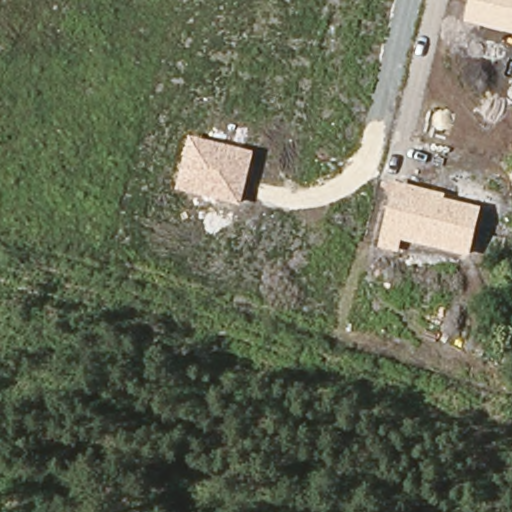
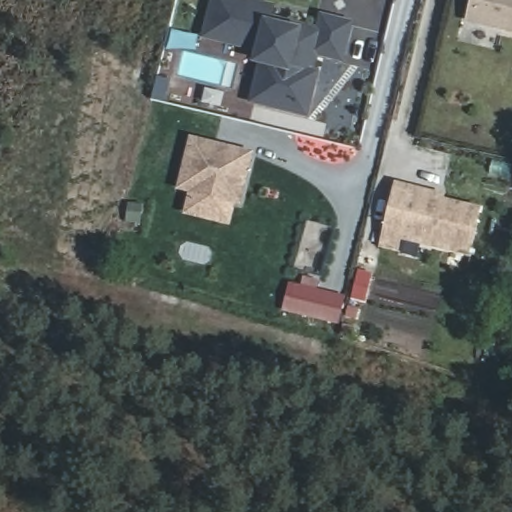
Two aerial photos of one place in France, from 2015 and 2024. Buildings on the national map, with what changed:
new [(320,57),(317,70),(319,71),(309,119),(250,104),(258,66),(252,65),(254,53),(203,40),(213,0),(258,0),(277,4),(274,16),(319,26),(322,14),(355,22),(345,63),(320,57)]
unchanged [(464,23),(470,0),(512,0),(512,34),(464,23)]
unchanged [(242,204),(177,188),(190,136),(255,151),(242,204)]
unchanged [(469,257),(402,240),(398,251),(378,246),(394,181),(446,192),(445,199),(482,208),(469,257)]
new [(282,310),(289,282),(346,296),(338,325),(282,310)]

